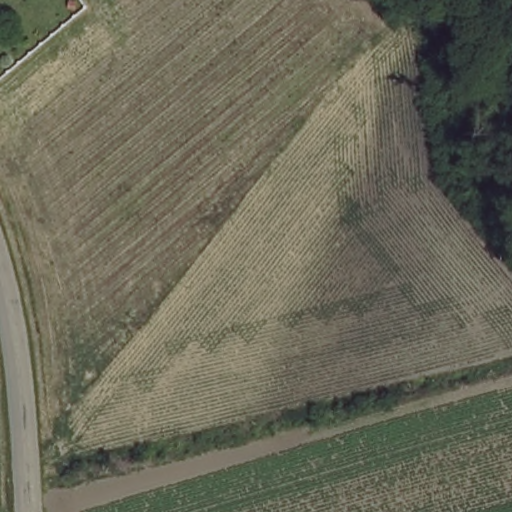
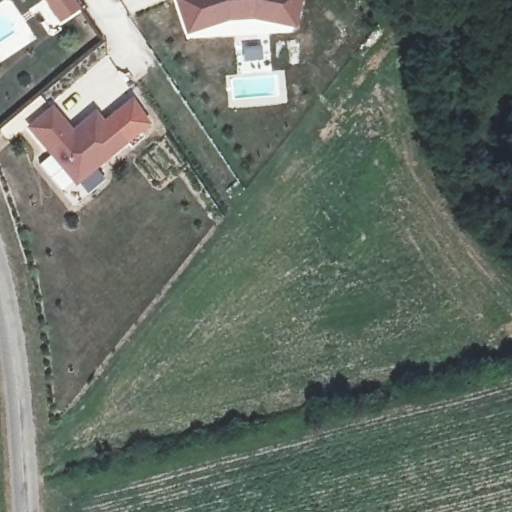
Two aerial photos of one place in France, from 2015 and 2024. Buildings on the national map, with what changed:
new [(59,22),(44,0),(76,0),(81,7),(59,22)]
new [(228,20),(185,33),(174,0),(301,0),(296,28),(253,18),(228,20)]
new [(75,185),(27,125),(52,105),(73,128),(94,109),(123,146),(75,185)]

